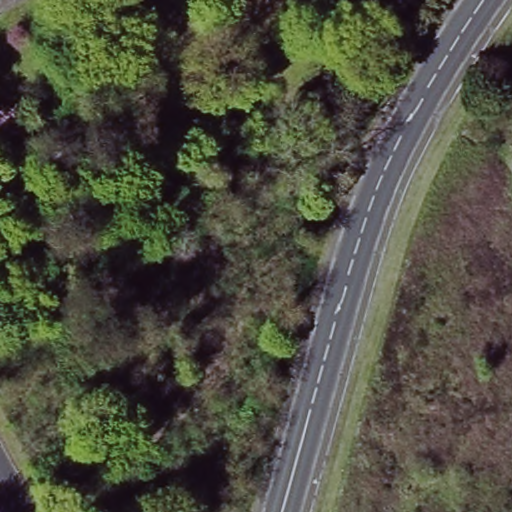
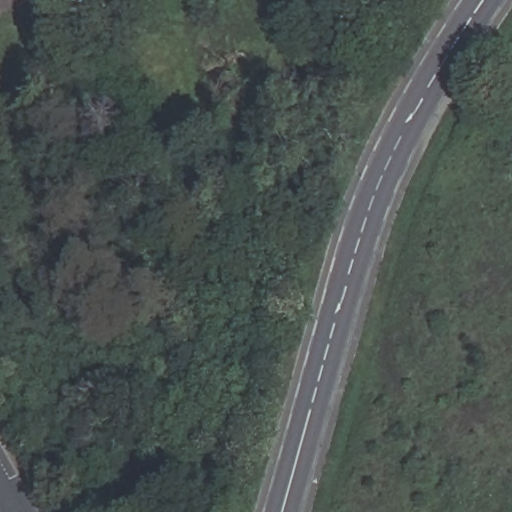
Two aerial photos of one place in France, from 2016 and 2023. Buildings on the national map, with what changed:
unchanged [(249,490),(262,495),(258,505),(245,500),(249,490)]

